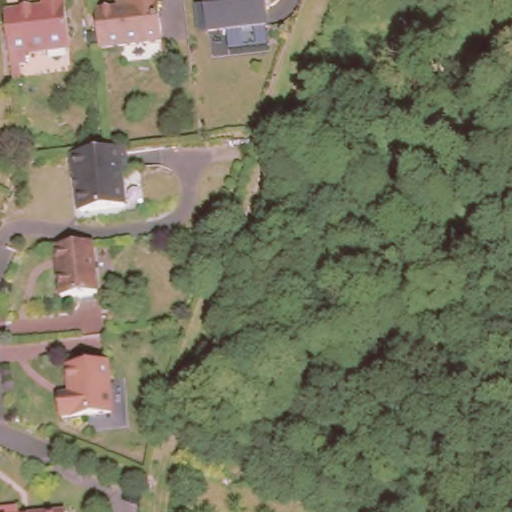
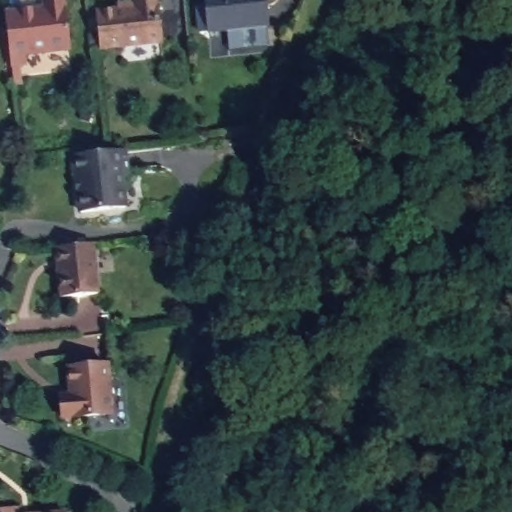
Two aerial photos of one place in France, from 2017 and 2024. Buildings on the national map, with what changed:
unchanged [(25,73),(17,73),(15,53),(10,10),(49,6),(48,0),(53,0),(68,0),(74,47),(30,51),(31,61),(24,62),(25,73)]
unchanged [(161,0),(165,36),(104,43),(100,6),(128,3),(127,0),(161,0)]
unchanged [(233,29),(233,27),(212,29),(209,0),(269,0),(272,24),(233,29)]
unchanged [(131,168),(127,177),(130,207),(85,211),(81,174),(77,175),(75,154),(115,149),(129,148),(131,168)]
unchanged [(102,293),(67,297),(61,247),(96,243),(102,293)]
unchanged [(112,364),(118,414),(67,419),(65,397),(76,396),(72,368),(112,364)]

